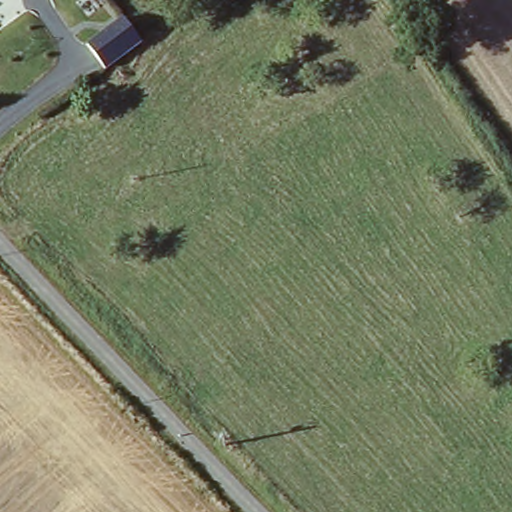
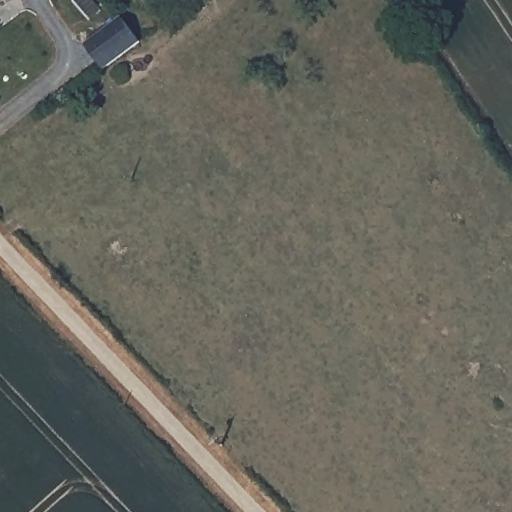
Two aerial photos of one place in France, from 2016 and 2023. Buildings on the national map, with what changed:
unchanged [(145,39),(108,67),(90,43),(128,17),(145,39)]

